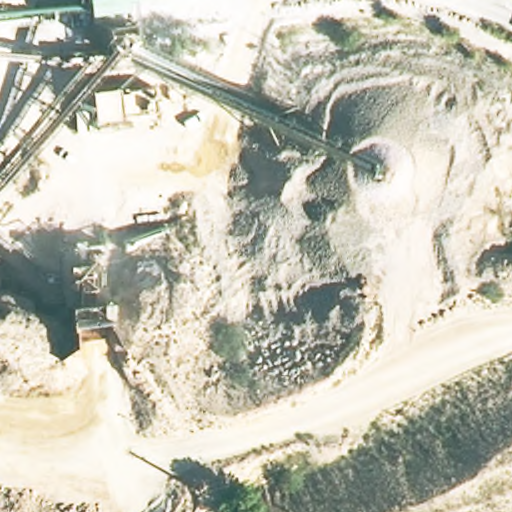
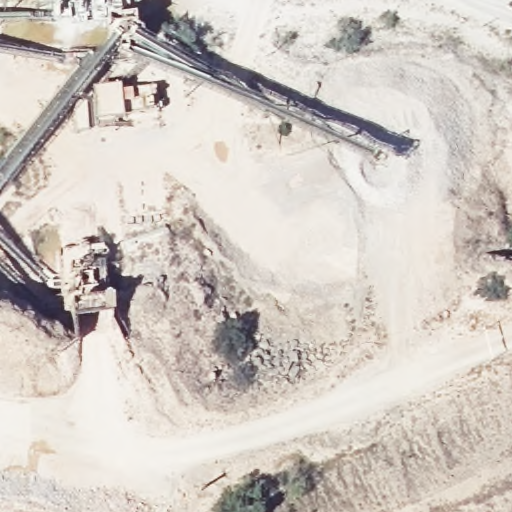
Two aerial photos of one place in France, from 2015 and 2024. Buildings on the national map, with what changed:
unchanged [(77,7),(75,0),(112,0),(77,7)]
unchanged [(114,100),(150,99),(152,119),(116,120),(117,126),(90,129),(87,97),(114,93),(114,100)]
unchanged [(100,249),(105,292),(105,305),(108,328),(67,331),(65,312),(62,300),(55,254),(100,249)]

